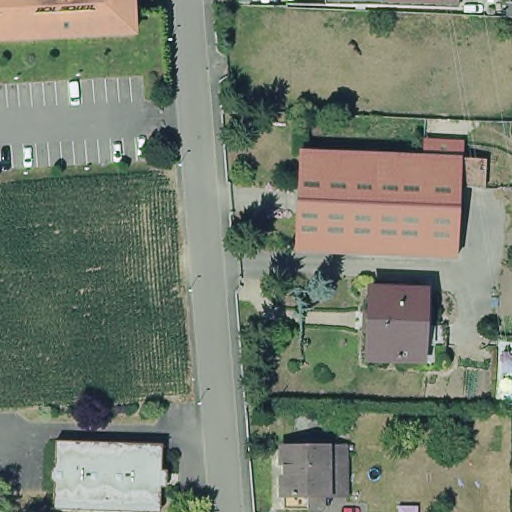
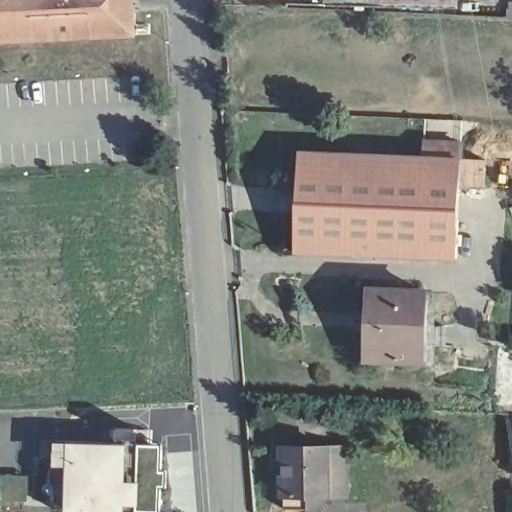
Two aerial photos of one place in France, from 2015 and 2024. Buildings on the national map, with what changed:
unchanged [(0,36),(0,0),(132,0),(133,30),(0,36)]
unchanged [(328,5),(329,0),(385,0),(385,6),(328,5)]
unchanged [(385,6),(385,0),(460,0),(460,7),(385,6)]
unchanged [(418,256),(293,251),(298,151),(422,156),(418,256)]
unchanged [(454,258),(418,256),(422,156),(460,157),(455,232),(454,258)]
unchanged [(460,157),(488,159),(484,233),(455,232),(460,157)]
unchanged [(369,359),(370,290),(425,292),(423,362),(369,359)]
unchanged [(51,510),(52,442),(135,445),(158,445),(158,451),(157,470),(162,471),(162,489),(157,489),(156,507),(156,512),(133,512),(51,510)]
unchanged [(287,503),(285,444),(309,443),(337,442),(348,442),(349,488),(321,488),(321,503),(287,503)]

